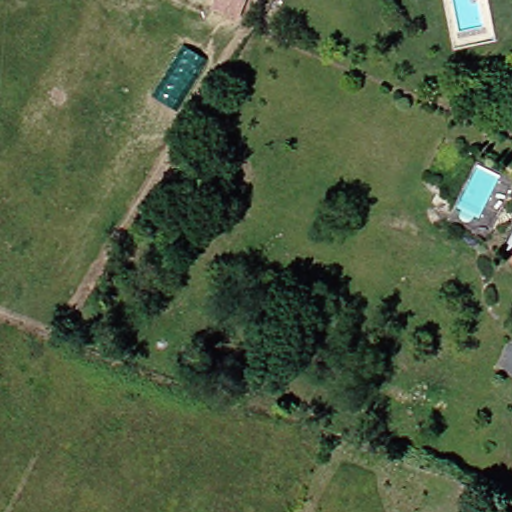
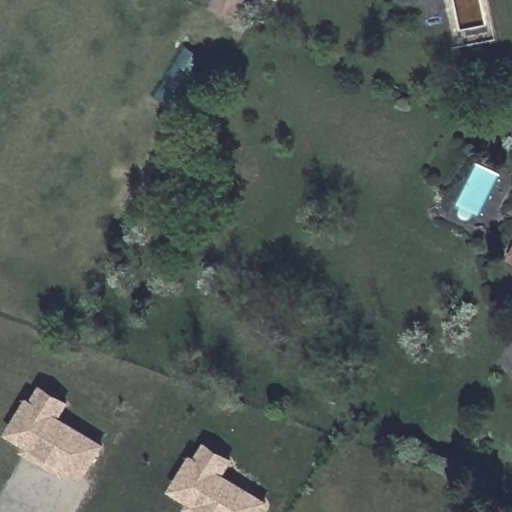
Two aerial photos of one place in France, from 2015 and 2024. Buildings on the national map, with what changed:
new [(40,387),(63,402),(54,417),(30,402),(40,387)]
new [(6,431),(26,400),(98,443),(79,476),(64,467),(60,473),(27,453),(21,450),(25,443),(31,447),(6,431)]
new [(202,446),(225,460),(216,475),(193,460),(202,446)]
new [(189,458),(261,502),(254,512),(191,512),(190,512),(194,506),(169,490),(189,458)]
new [(185,508),(189,501),(194,506),(190,512),(185,508)]

